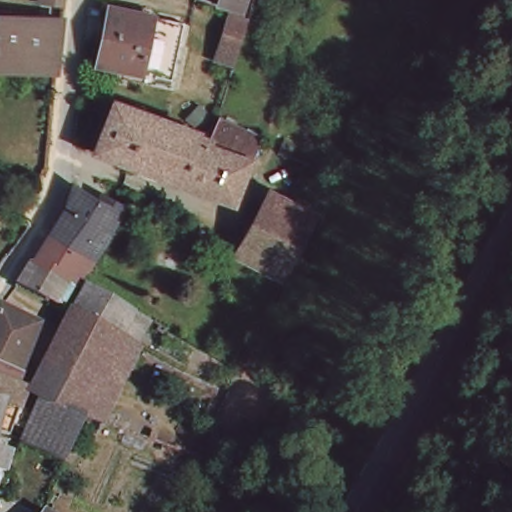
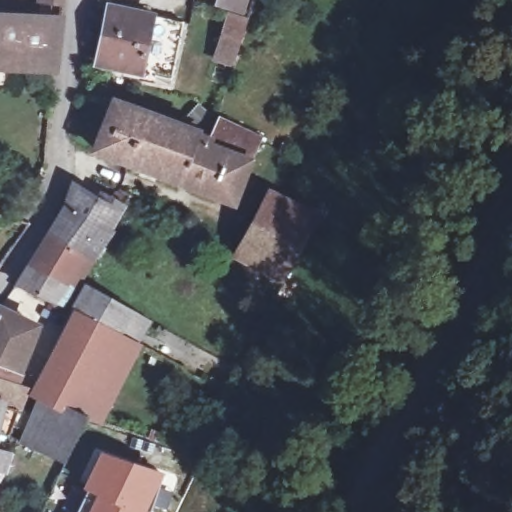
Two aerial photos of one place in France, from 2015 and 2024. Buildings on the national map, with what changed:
unchanged [(95,64),(107,7),(147,15),(145,28),(150,29),(146,44),(140,72),(95,64)]
unchanged [(222,34),(229,7),(242,11),(237,27),(234,38),(222,34)]
unchanged [(146,44),(150,29),(145,28),(147,15),(179,21),(168,77),(140,72),(146,44)]
unchanged [(59,22),(55,72),(39,72),(0,69),(0,20),(59,22)]
unchanged [(234,212),(214,205),(95,162),(112,117),(197,148),(195,154),(228,166),(249,174),(234,212)]
unchanged [(252,163),(208,147),(213,130),(218,132),(256,151),(252,163)]
unchanged [(78,257),(38,236),(58,202),(64,187),(64,186),(105,207),(100,216),(95,226),(97,227),(81,258),(78,257)]
unchanged [(267,273),(234,256),(235,253),(265,199),(282,210),(308,221),(280,279),(267,273)]
unchanged [(24,260),(38,236),(78,257),(81,258),(72,275),(69,281),(67,280),(62,288),(52,283),(43,301),(9,285),(24,260)]
unchanged [(84,282),(134,310),(138,312),(125,338),(86,321),(70,313),(69,313),(84,282)]
unchanged [(29,327),(2,386),(12,390),(12,391),(5,408),(0,407),(0,313),(29,327)]
unchanged [(20,415),(29,399),(26,397),(29,387),(70,313),(86,321),(125,338),(132,342),(90,422),(72,416),(55,452),(52,451),(10,438),(9,437),(20,415)]
unchanged [(5,408),(0,419),(0,407),(5,408)]
new [(164,475),(150,512),(140,512),(76,512),(101,453),(164,475)]
demolished [(35,512),(40,504),(52,512),(35,512)]

